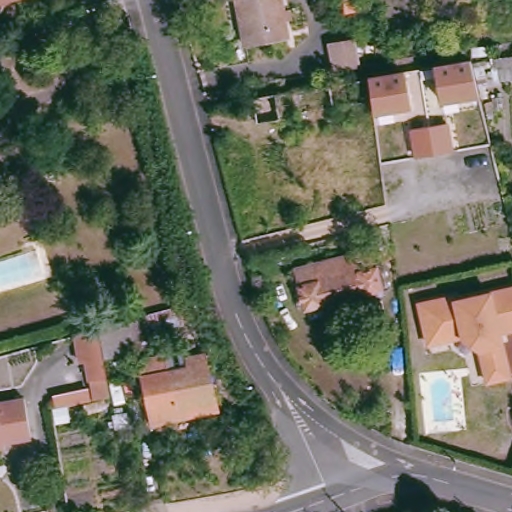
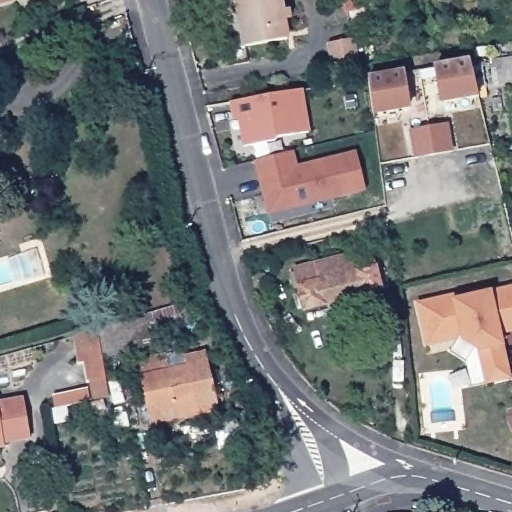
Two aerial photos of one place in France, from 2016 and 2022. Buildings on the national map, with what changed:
unchanged [(279,12),(288,12),(292,32),(284,33),(284,43),(244,49),(237,2),(249,0),(276,0),(279,12)]
unchanged [(358,67),(332,71),(328,43),(354,40),(358,67)]
unchanged [(475,96),(437,102),(436,95),(440,90),(435,86),(432,69),(467,62),(475,96)]
unchanged [(404,74),(410,107),(374,113),(372,101),(370,80),(404,74)]
new [(245,147),(239,120),(233,122),(230,104),(304,91),(311,132),(245,147)]
new [(449,125),(453,152),(414,159),(410,132),(449,125)]
new [(365,191),(268,216),(255,162),(293,152),(297,165),(356,154),(365,191)]
unchanged [(384,291),(308,309),(299,270),(375,252),(384,291)]
unchanged [(508,370),(486,375),(479,347),(462,337),(458,338),(440,342),(436,323),(423,326),(418,305),(454,297),(455,302),(512,289),(512,336),(501,338),(508,370)]
unchanged [(135,326),(140,357),(105,363),(99,330),(135,326)]
unchanged [(92,384),(88,385),(85,366),(81,367),(76,336),(99,330),(105,363),(111,398),(94,401),(92,384)]
unchanged [(206,362),(215,412),(160,423),(151,373),(206,362)]
unchanged [(25,399),(31,437),(5,442),(5,446),(0,446),(0,403),(25,399)]

